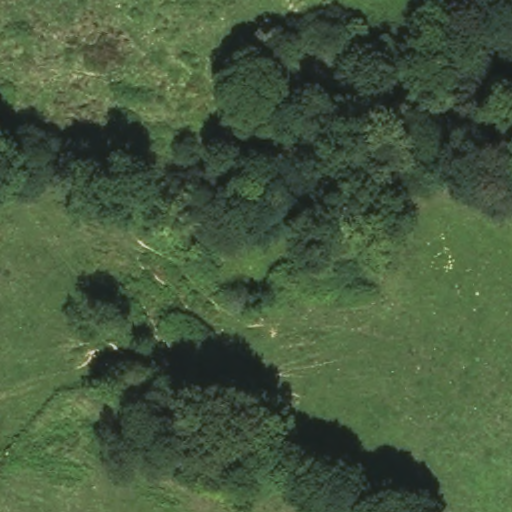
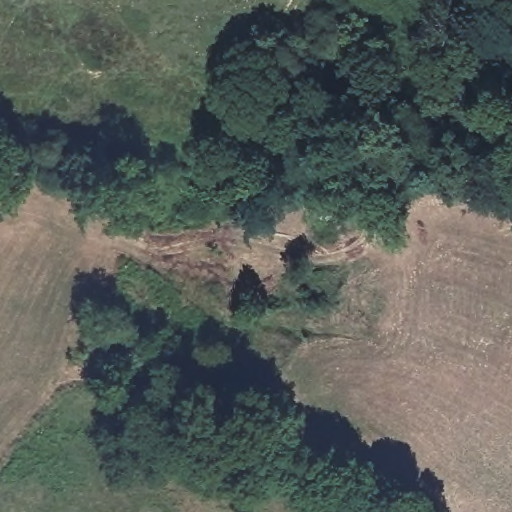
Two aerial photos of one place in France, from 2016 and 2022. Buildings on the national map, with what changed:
unchanged [(459,179),(405,199),(403,189),(456,167),(459,179)]

